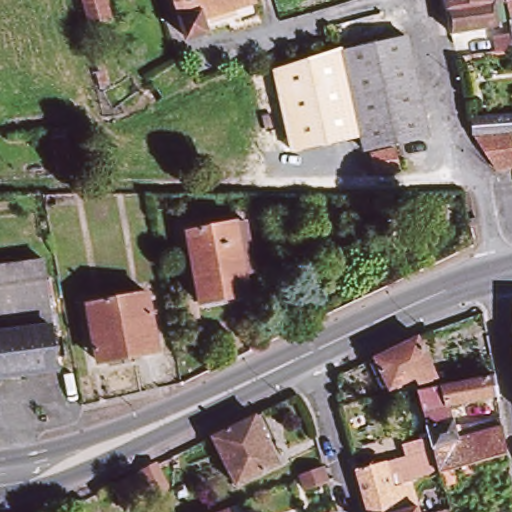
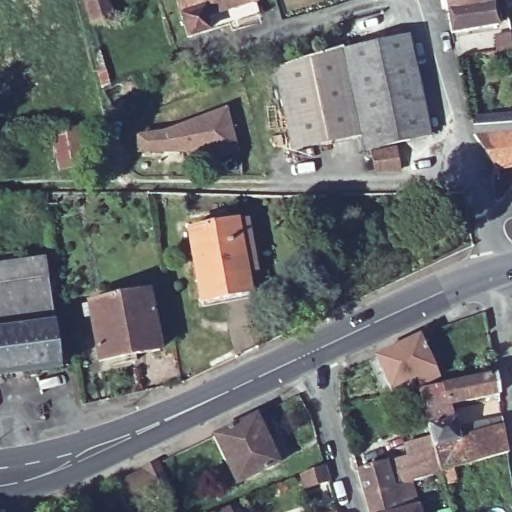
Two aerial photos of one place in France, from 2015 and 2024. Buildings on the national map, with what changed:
unchanged [(112,23),(95,28),(87,0),(105,0),(112,23)]
unchanged [(258,15),(189,36),(177,0),(254,0),(258,15)]
unchanged [(504,5),(493,7),(447,13),(444,0),(503,0),(504,5)]
unchanged [(444,31),(442,21),(447,20),(447,13),(493,7),(498,31),(451,38),(450,30),(444,31)]
unchanged [(434,140),(371,153),(349,54),(412,40),(434,140)]
unchanged [(342,48),(360,136),(291,151),(273,70),(342,48)]
new [(167,130),(228,107),(238,153),(136,154),(135,134),(167,130)]
unchanged [(498,170),(476,138),(476,134),(475,119),(512,116),(512,132),(512,135),(512,168),(498,170)]
unchanged [(90,174),(60,179),(52,137),(82,131),(90,174)]
demolished [(262,137),(268,163),(249,168),(243,142),(262,137)]
unchanged [(402,153),(405,173),(380,175),(377,156),(402,153)]
unchanged [(194,232),(242,223),(256,297),(208,306),(194,232)]
unchanged [(63,375),(0,383),(0,275),(49,269),(63,375)]
unchanged [(92,304),(153,293),(164,351),(103,362),(92,304)]
unchanged [(374,362),(417,341),(437,383),(418,391),(415,383),(391,395),(374,362)]
unchanged [(439,476),(410,484),(392,488),(385,465),(406,459),(403,450),(431,444),(418,395),(496,380),(498,399),(447,406),(452,433),(502,423),(507,460),(509,477),(474,486),(470,469),(451,473),(455,487),(442,490),(439,476)]
unchanged [(284,468),(242,488),(218,439),(260,419),(284,468)]
unchanged [(410,484),(418,511),(414,512),(367,512),(356,473),(385,465),(392,488),(410,484)]
unchanged [(154,498),(139,505),(126,479),(142,472),(154,498)]
unchanged [(302,482),(330,472),(334,486),(307,494),(302,482)]
unchanged [(418,512),(414,512),(418,511),(418,512)]

